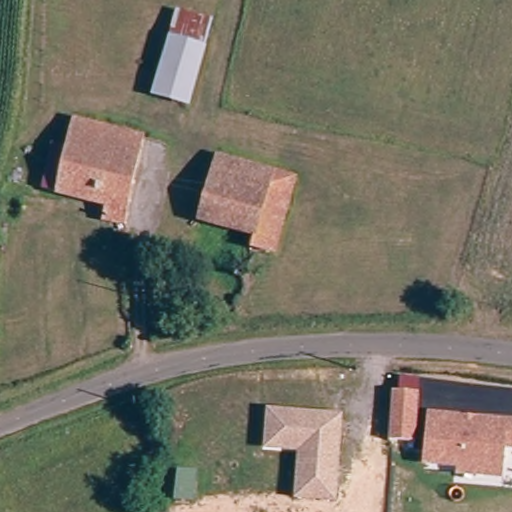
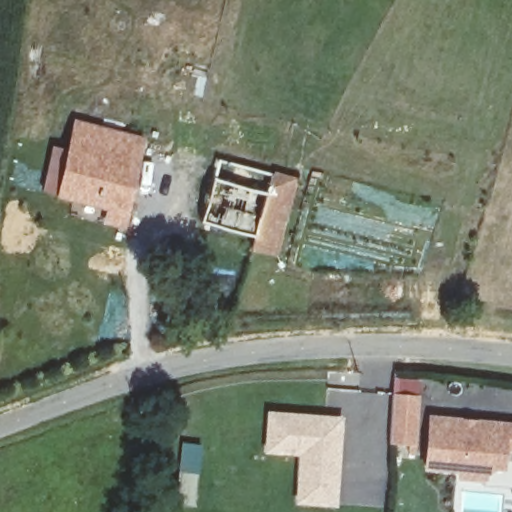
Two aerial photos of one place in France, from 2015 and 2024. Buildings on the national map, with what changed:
demolished [(206,46),(188,108),(149,95),(168,36),(175,10),(213,18),(206,46)]
unchanged [(101,218),(105,200),(58,191),(64,163),(73,114),(141,132),(123,204),(125,223),(101,218)]
unchanged [(202,219),(217,153),(271,168),(257,234),(202,219)]
unchanged [(257,234),(271,168),(294,174),(274,251),(255,246),(257,234)]
new [(416,444),(389,443),(393,393),(399,393),(400,380),(420,381),(420,395),(416,444)]
unchanged [(341,506),(305,503),(309,455),(273,452),(277,416),(331,420),(347,421),(345,442),(343,465),(342,485),(341,506)]
unchanged [(510,453),(506,484),(457,479),(458,472),(425,468),(429,416),(512,423),(512,453),(510,453)]

